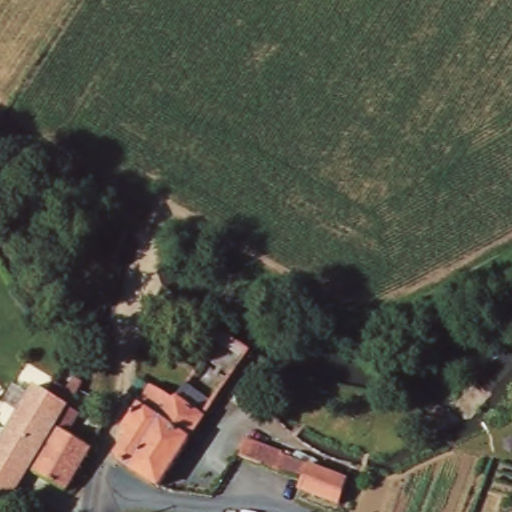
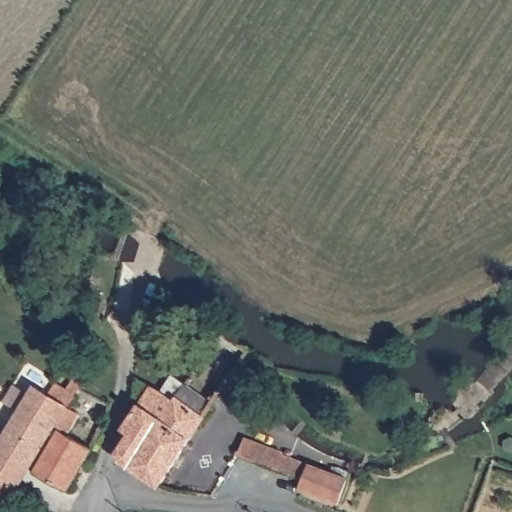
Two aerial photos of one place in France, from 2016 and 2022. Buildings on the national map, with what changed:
unchanged [(111,338),(108,348),(98,346),(99,336),(111,338)]
unchanged [(84,392),(85,394),(78,405),(85,411),(73,431),(97,447),(69,488),(40,468),(55,444),(50,440),(51,438),(73,403),(74,402),(54,388),(61,377),(64,379),(72,385),(80,373),(91,380),(89,384),(84,392)]
unchanged [(42,380),(54,388),(74,402),(73,403),(51,438),(50,440),(8,505),(0,501),(0,446),(42,380)]
unchanged [(176,397),(188,381),(196,386),(215,399),(219,402),(207,418),(204,422),(194,436),(160,485),(121,459),(118,453),(124,445),(121,442),(126,426),(136,411),(154,383),(176,397)]
unchanged [(339,504),(296,487),(300,478),(273,467),(236,452),(243,437),(280,452),(306,463),(348,481),(339,504)]

